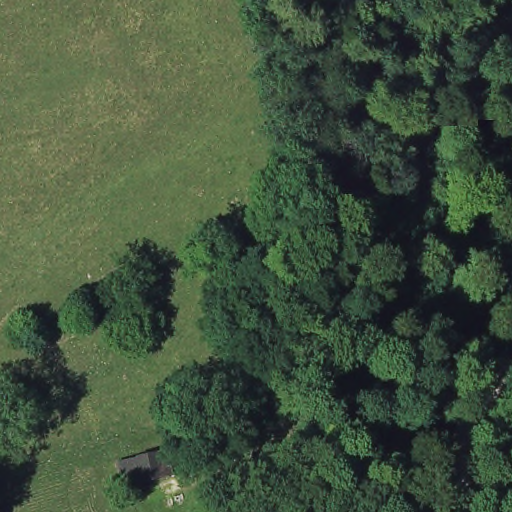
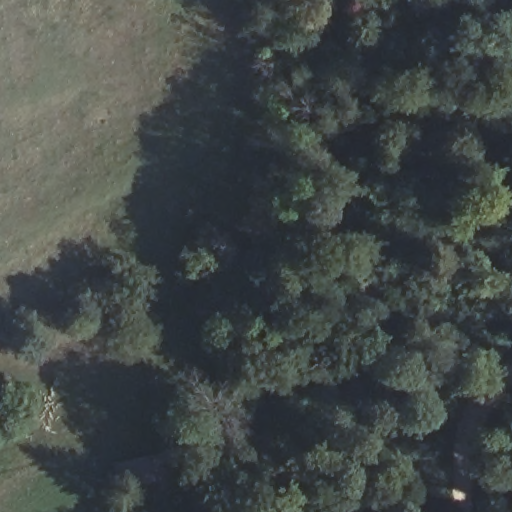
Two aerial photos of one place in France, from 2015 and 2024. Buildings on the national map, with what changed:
unchanged [(120,487),(111,462),(164,447),(170,475),(120,487)]

